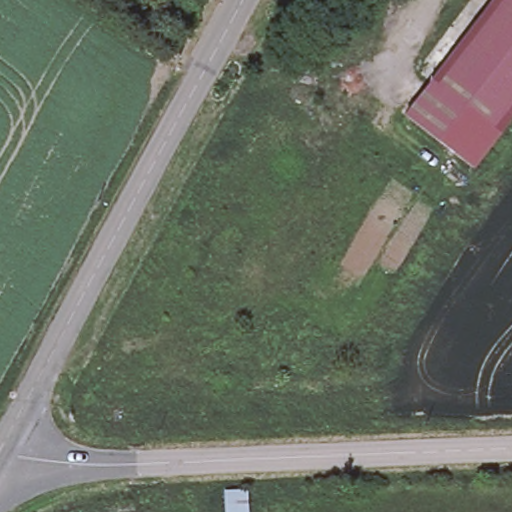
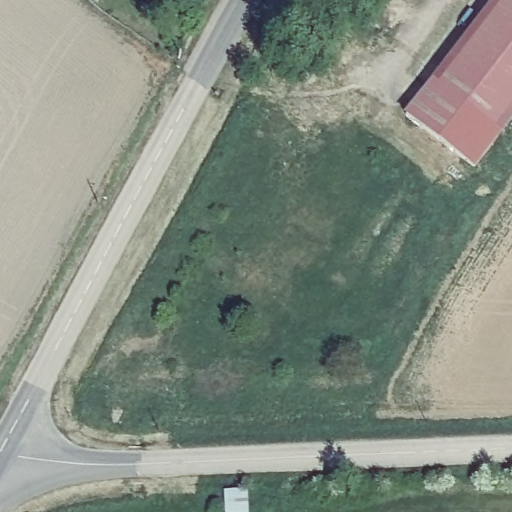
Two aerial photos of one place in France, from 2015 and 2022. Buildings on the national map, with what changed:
unchanged [(512,0),(512,121),(499,138),(431,85),(497,0),(512,0)]
unchanged [(499,138),(474,170),(407,117),(431,85),(499,138)]
unchanged [(251,489),(252,503),(264,503),(264,512),(224,512),(222,490),(251,489)]

